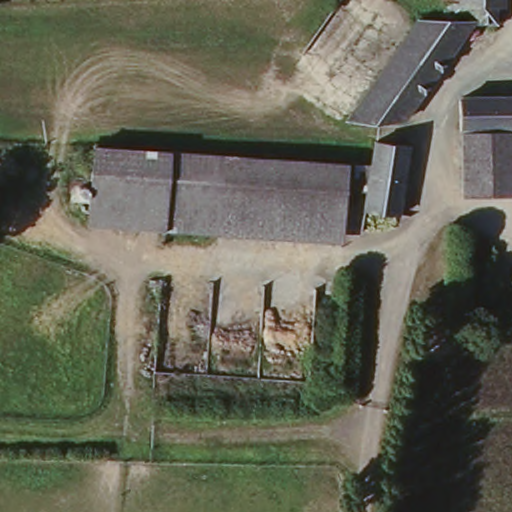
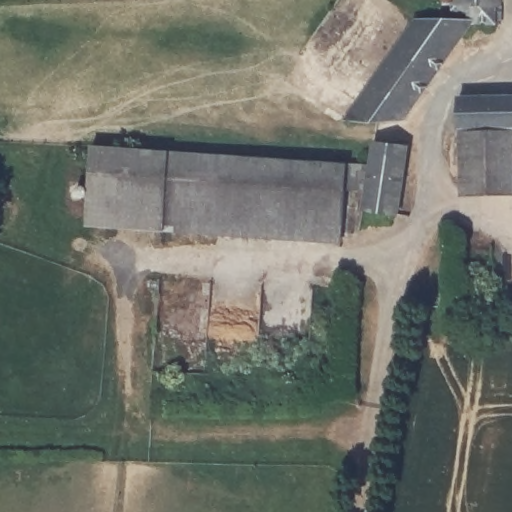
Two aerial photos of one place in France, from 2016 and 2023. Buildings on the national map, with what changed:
unchanged [(496,5),(490,5),(490,23),(460,24),(399,118),(367,121),(342,117),(411,20),(436,19),(437,3),(437,0),(496,0),(496,5)]
unchanged [(454,105),(512,104),(512,198),(456,200),(454,105)]
unchanged [(371,146),(400,150),(402,152),(392,218),(359,214),(362,196),(367,170),(371,146)]
unchanged [(362,196),(341,195),(337,247),(82,231),(82,216),(87,151),(367,170),(362,196)]

